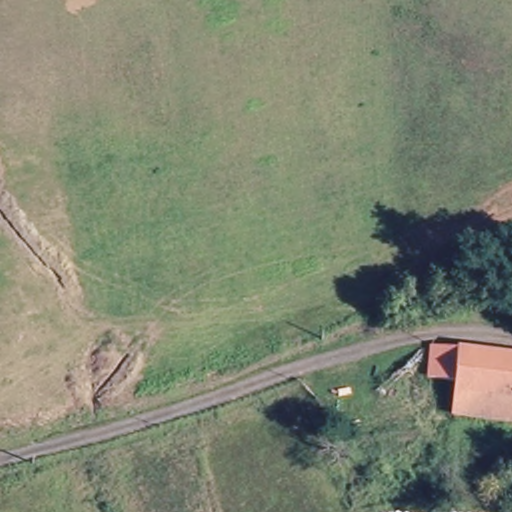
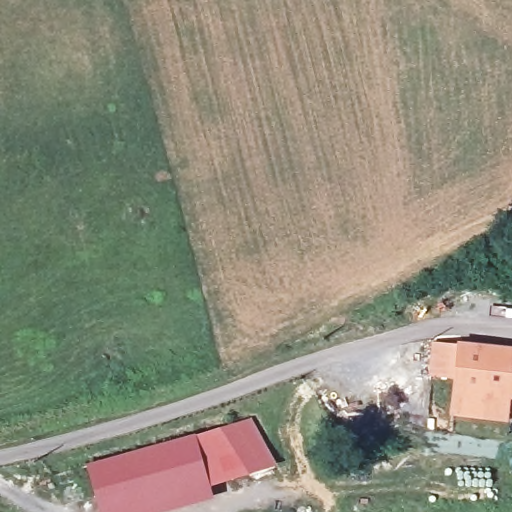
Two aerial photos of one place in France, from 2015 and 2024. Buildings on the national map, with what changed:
unchanged [(512,351),(512,416),(456,412),(460,377),(432,375),(435,344),(512,351)]
new [(210,487),(194,434),(218,428),(250,475),(210,487)]
new [(214,498),(163,512),(100,512),(85,464),(194,434),(214,498)]

